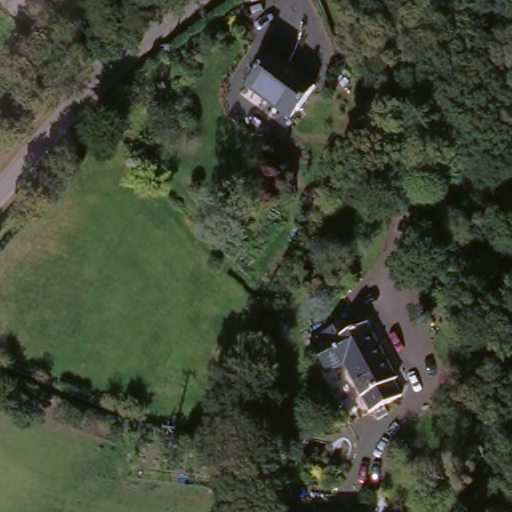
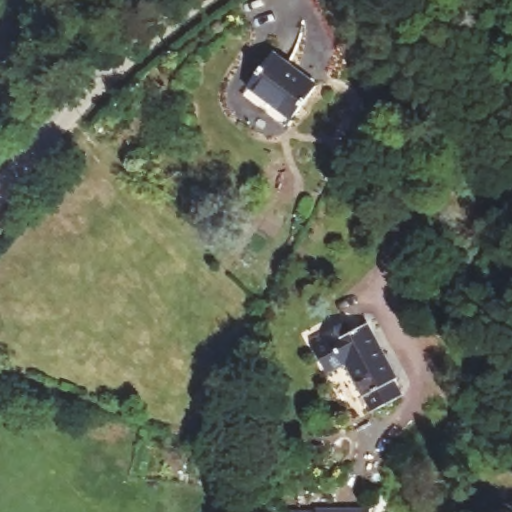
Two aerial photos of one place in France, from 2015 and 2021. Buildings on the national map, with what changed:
unchanged [(291,122),(244,90),(268,57),(314,87),(291,122)]
unchanged [(349,335),(370,328),(392,384),(389,385),(395,403),(363,414),(343,363),(324,368),(313,335),(344,324),(349,335)]

